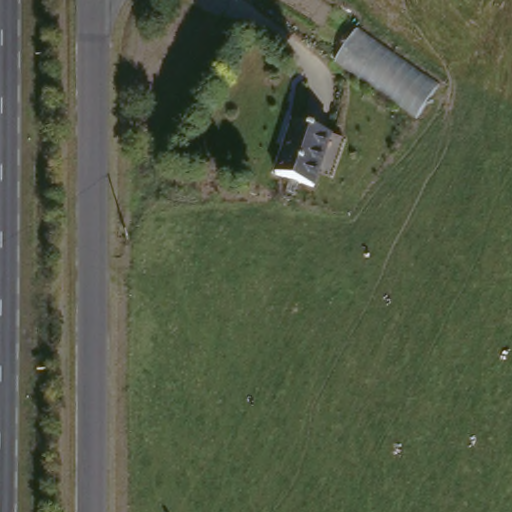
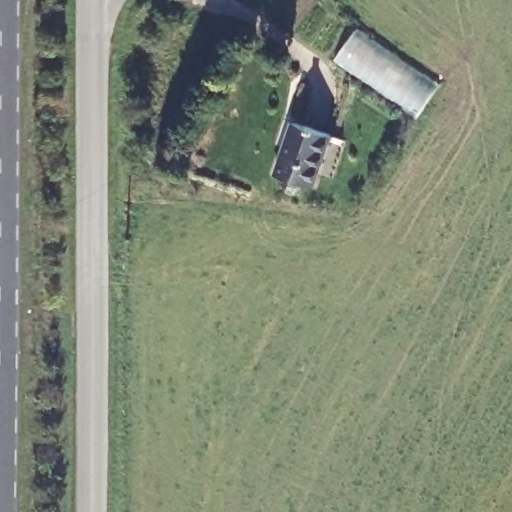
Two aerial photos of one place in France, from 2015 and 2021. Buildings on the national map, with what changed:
unchanged [(442,84),(420,117),(342,60),(365,30),(442,84)]
unchanged [(299,124),(336,139),(316,190),(279,176),(299,124)]

